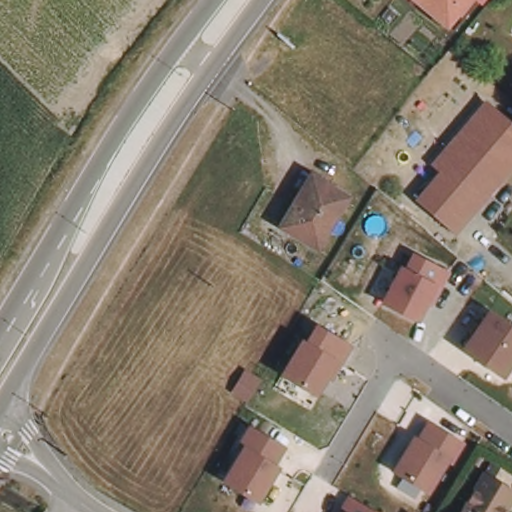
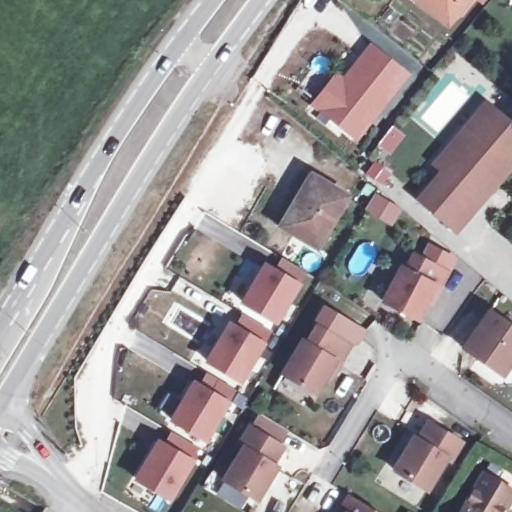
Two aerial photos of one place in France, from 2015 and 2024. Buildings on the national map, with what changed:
unchanged [(440,23),(412,0),(460,0),(440,23)]
new [(335,71),(342,77),(370,42),(410,74),(356,142),(309,106),(335,71)]
unchanged [(512,124),(512,170),(456,237),(416,200),(439,171),(431,165),(486,101),(512,124)]
unchanged [(344,193),(313,247),(277,226),(309,173),(344,193)]
unchanged [(399,263),(406,267),(415,251),(452,272),(435,310),(427,306),(420,322),(379,301),(399,263)]
new [(264,265),(273,271),(283,258),(304,271),(297,283),(275,321),(242,303),(264,265)]
unchanged [(512,323),(512,367),(505,377),(461,348),(489,307),(512,323)]
new [(230,325),(235,328),(244,315),(267,330),(259,344),(238,379),(207,362),(230,325)]
unchanged [(300,340),(307,342),(316,326),(349,346),(329,380),(324,375),(314,393),(281,375),(300,340)]
demolished [(226,384),(236,367),(252,376),(241,394),(226,384)]
new [(193,383),(198,386),(208,375),(233,389),(226,402),(202,440),(171,422),(193,383)]
unchanged [(412,433),(419,437),(427,421),(465,444),(452,466),(445,462),(427,491),(391,470),(412,433)]
unchanged [(287,448),(277,464),(281,466),(259,504),(219,482),(241,446),(236,443),(249,425),(287,448)]
new [(157,442),(164,445),(172,433),(197,448),(191,461),(167,498),(136,480),(157,442)]
unchanged [(512,490),(512,496),(502,512),(461,512),(485,474),(512,490)]
unchanged [(380,512),(335,512),(347,494),(380,512)]
new [(413,512),(399,512),(402,506),(413,512)]

